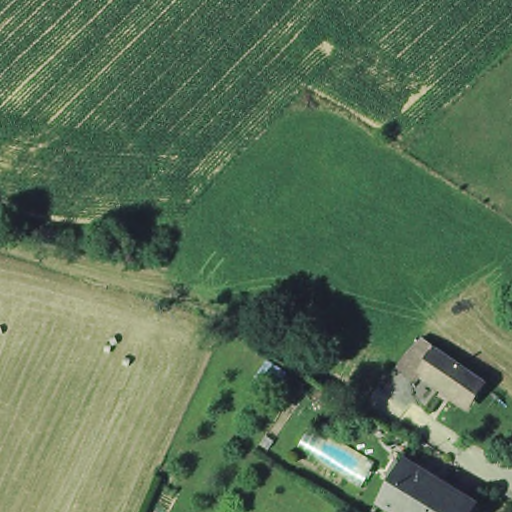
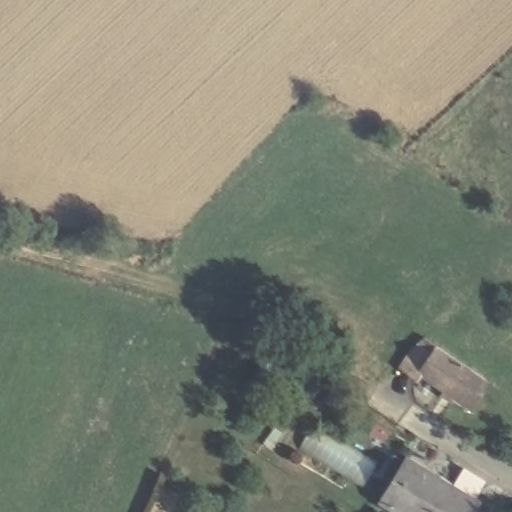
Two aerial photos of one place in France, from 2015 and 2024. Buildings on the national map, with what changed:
unchanged [(467,409),(454,400),(420,376),(416,381),(402,372),(417,351),(430,361),(437,351),(470,375),(483,384),(467,409)]
unchanged [(477,501),(471,512),(403,512),(385,501),(400,477),(395,473),(404,459),(410,462),(449,488),(451,485),(477,501)]

